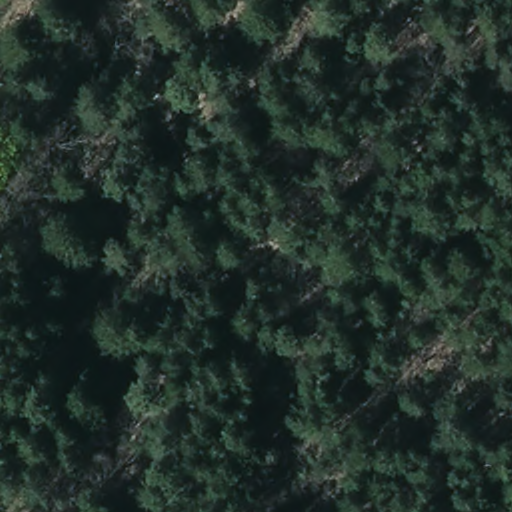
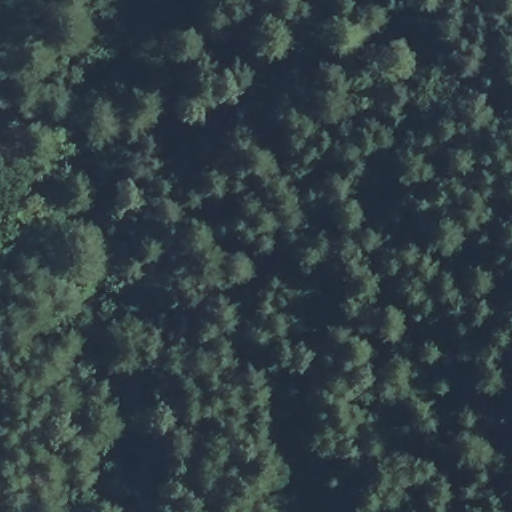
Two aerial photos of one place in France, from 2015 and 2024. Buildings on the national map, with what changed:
[]

